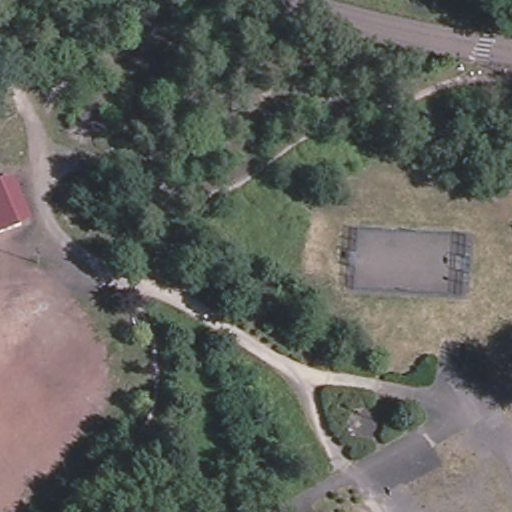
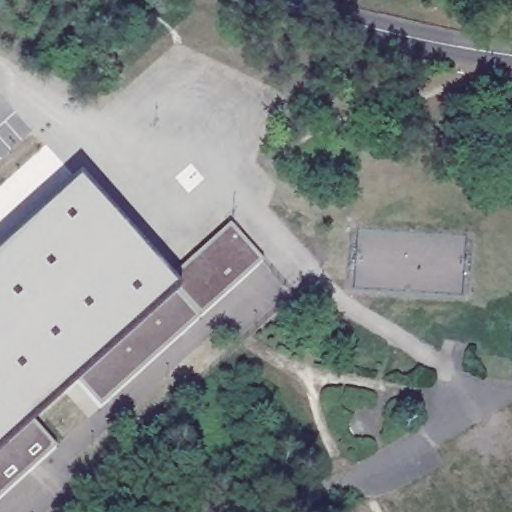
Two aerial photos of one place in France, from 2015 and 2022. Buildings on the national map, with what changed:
demolished [(0,178),(10,174),(33,215),(0,228),(0,178)]
new [(100,407),(80,376),(35,417),(55,447),(0,497),(0,250),(78,179),(163,273),(230,223),(264,261),(100,407)]

